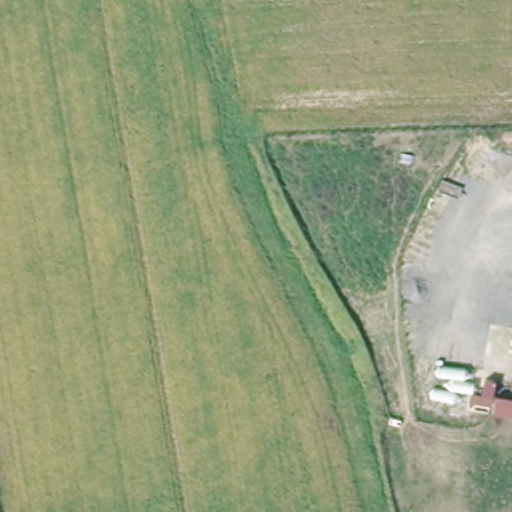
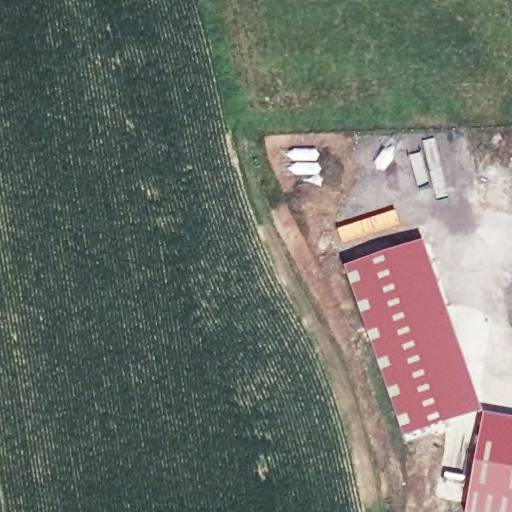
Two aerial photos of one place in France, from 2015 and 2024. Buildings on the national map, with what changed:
new [(482,415),(406,441),(346,270),(425,244),(482,415)]
new [(512,420),(512,512),(468,512),(485,415),(512,420)]

